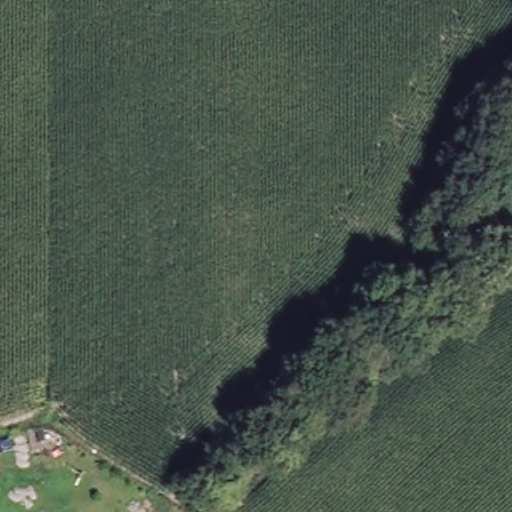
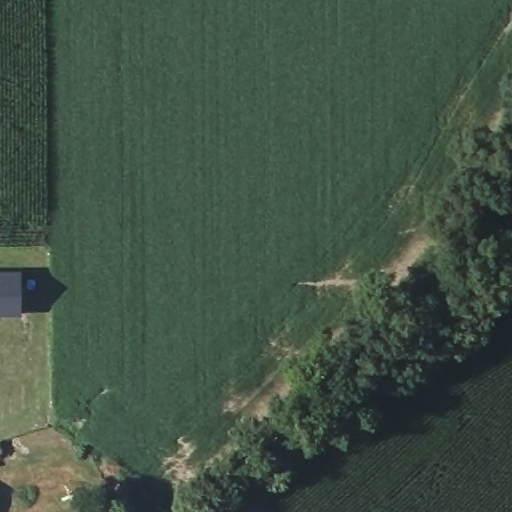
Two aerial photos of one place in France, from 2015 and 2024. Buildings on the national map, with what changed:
new [(24,317),(0,316),(0,269),(23,269),(24,317)]

